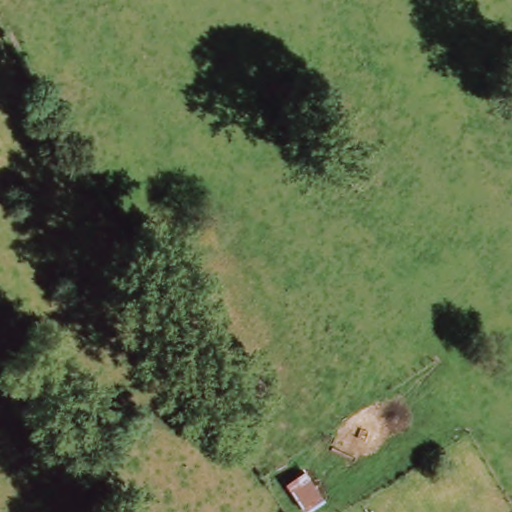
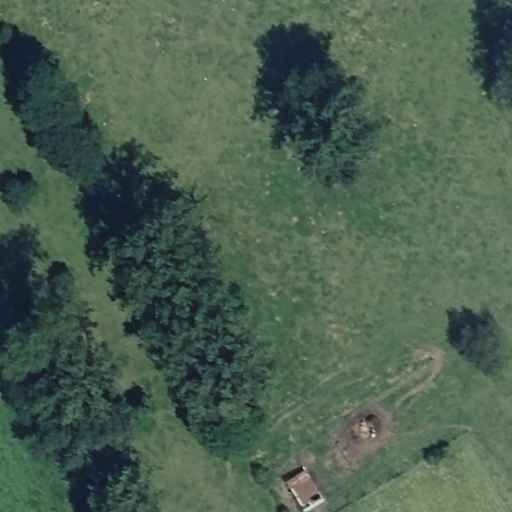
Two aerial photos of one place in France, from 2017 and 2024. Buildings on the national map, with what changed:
unchanged [(307,468),(327,500),(305,512),(304,512),(285,484),(307,468)]

